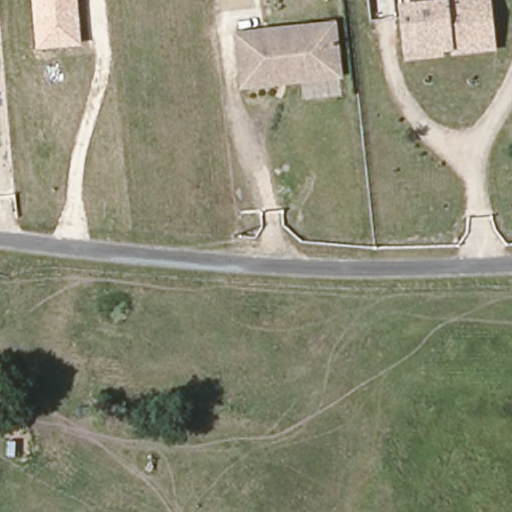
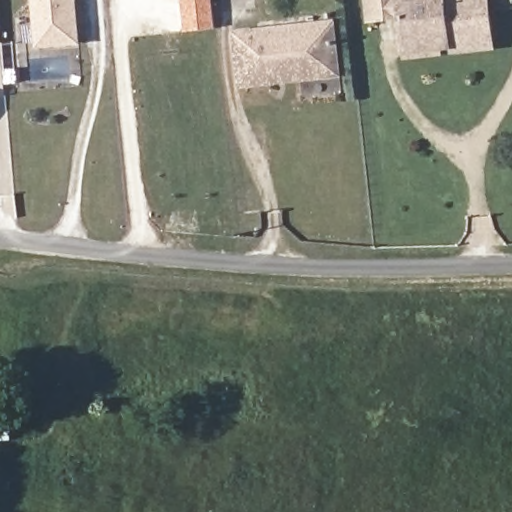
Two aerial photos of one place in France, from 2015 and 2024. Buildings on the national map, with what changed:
unchanged [(36,48),(32,0),(75,0),(79,44),(36,48)]
new [(213,0),(217,30),(186,33),(182,0),(213,0)]
unchanged [(450,44),(441,44),(441,54),(402,57),(398,9),(397,0),(444,0),(444,4),(490,0),(494,39),(495,53),(450,56),(450,44)]
unchanged [(240,81),(237,29),(288,25),(319,23),(330,22),(332,44),(335,70),(330,75),(325,75),(295,78),(275,79),(240,81)]

